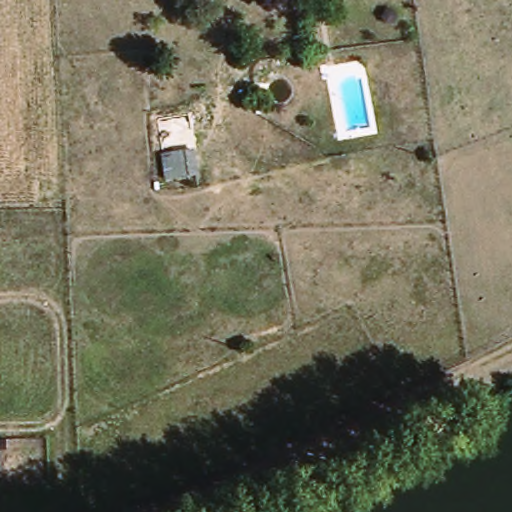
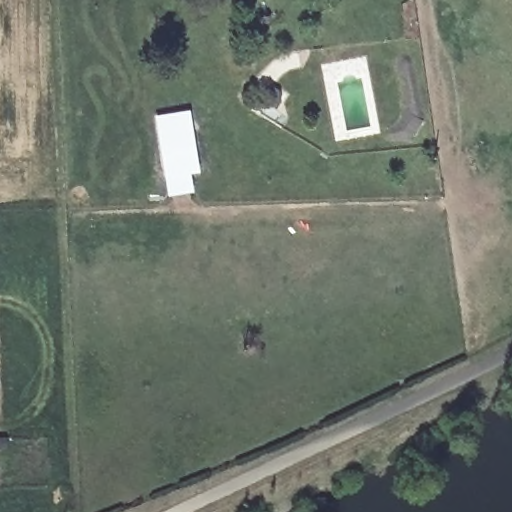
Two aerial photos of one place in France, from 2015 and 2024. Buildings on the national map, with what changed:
new [(191,109),(201,174),(192,176),(195,193),(166,197),(154,115),(191,109)]

